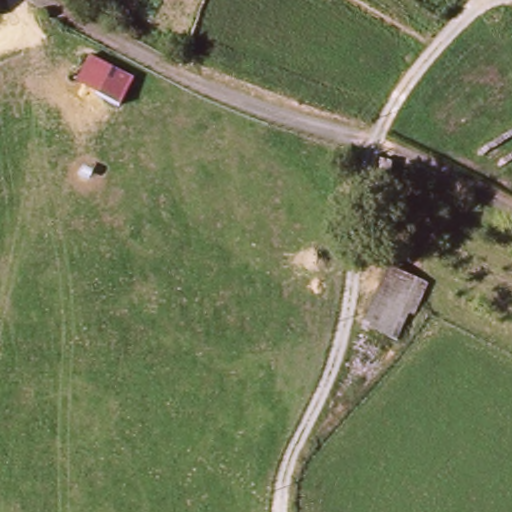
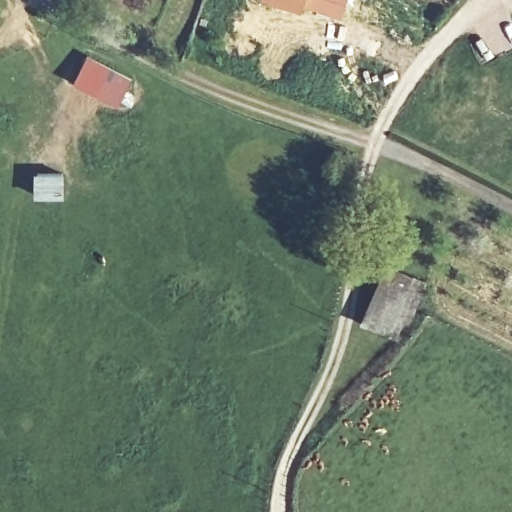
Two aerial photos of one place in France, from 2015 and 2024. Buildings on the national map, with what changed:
new [(302,8),(277,0),(305,0),(302,8)]
new [(305,0),(348,0),(339,20),(302,8),(305,0)]
unchanged [(86,55),(133,79),(120,105),(74,81),(86,55)]
unchanged [(396,268),(435,285),(410,342),(370,328),(396,268)]

